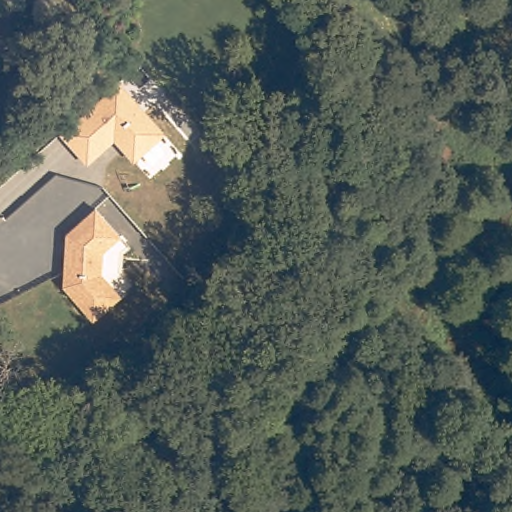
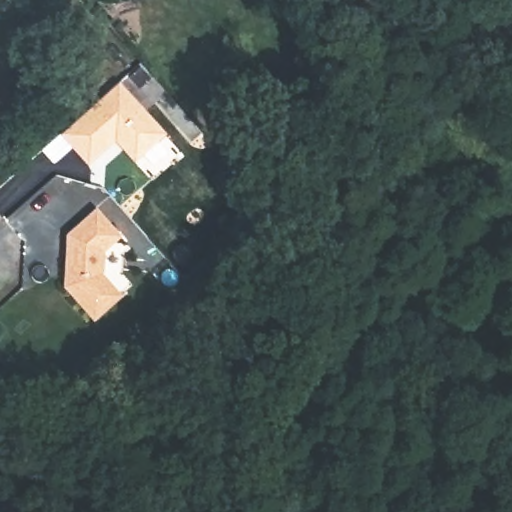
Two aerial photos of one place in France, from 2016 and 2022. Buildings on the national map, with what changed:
unchanged [(135,163),(114,142),(86,166),(60,134),(120,80),(165,132),(135,163)]
unchanged [(120,237),(103,252),(103,276),(120,297),(91,322),(64,292),(64,235),(96,207),(120,237)]

